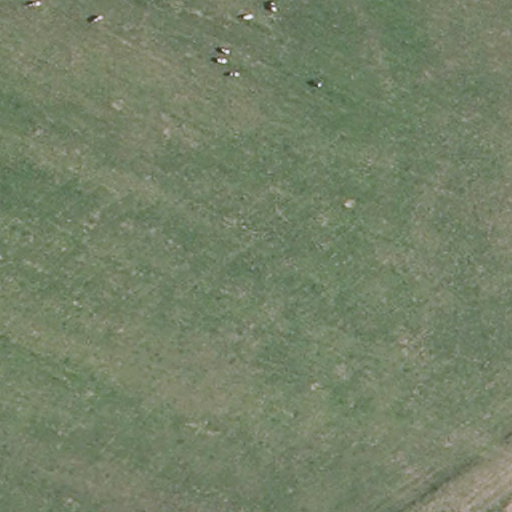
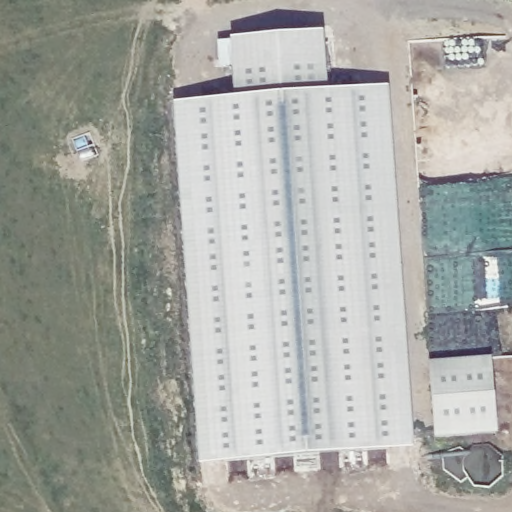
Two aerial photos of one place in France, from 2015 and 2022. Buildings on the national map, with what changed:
new [(395,466),(199,470),(177,101),(378,94),(395,466)]
new [(492,363),(495,437),(435,439),(432,365),(492,363)]

